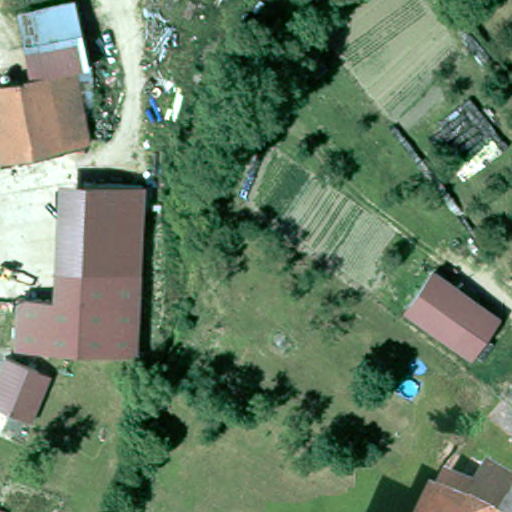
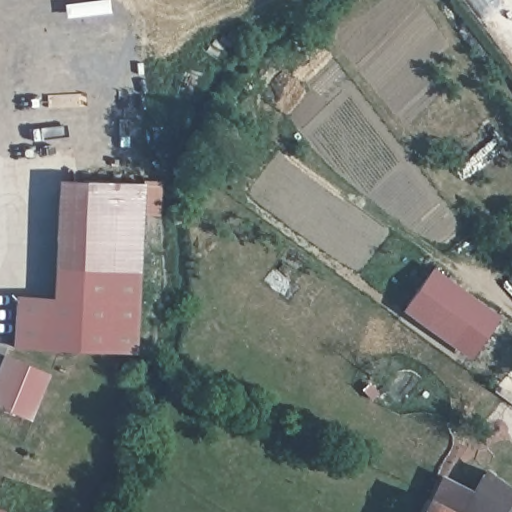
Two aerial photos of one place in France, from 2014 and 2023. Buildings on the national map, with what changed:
demolished [(1,165),(0,159),(0,83),(30,70),(18,14),(75,4),(105,144),(1,165)]
unchanged [(52,299),(55,181),(142,182),(138,302),(52,299)]
unchanged [(476,357),(400,302),(427,269),(500,325),(476,357)]
unchanged [(21,298),(52,299),(138,302),(136,357),(105,356),(18,351),(21,298)]
unchanged [(12,415),(0,407),(0,373),(10,356),(38,371),(48,377),(23,422),(12,415)]
unchanged [(468,498),(482,482),(485,478),(494,484),(501,475),(512,483),(512,512),(451,512),(432,503),(446,482),(468,498)]
unchanged [(432,503),(451,512),(427,512),(431,503),(432,503)]

